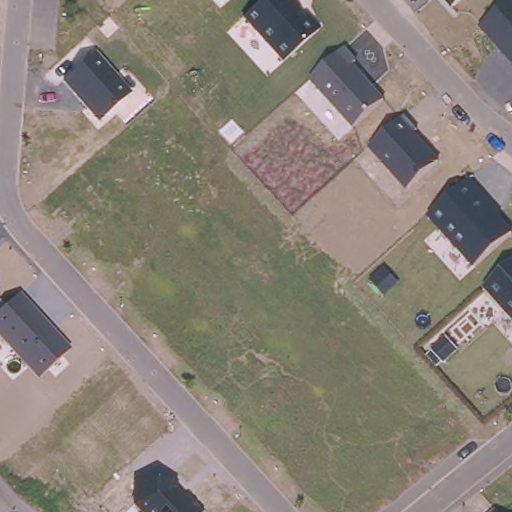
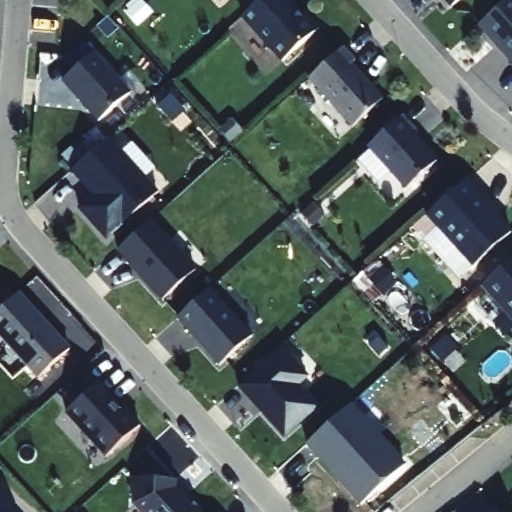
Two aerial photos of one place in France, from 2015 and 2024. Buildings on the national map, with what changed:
unchanged [(278,58),(240,17),(261,0),(289,0),(312,25),(278,58)]
unchanged [(444,0),(459,0),(451,7),(444,0)]
unchanged [(508,0),(512,0),(512,68),(477,30),(508,0)]
unchanged [(308,80),(340,50),(382,97),(350,127),(308,80)]
unchanged [(96,121),(57,81),(90,51),(128,91),(96,121)]
unchanged [(418,132),(415,136),(437,161),(407,190),(368,148),(402,115),(418,132)]
new [(107,136),(157,191),(107,237),(79,207),(96,192),(87,182),(85,185),(71,170),(107,136)]
unchanged [(470,261),(473,265),(458,278),(423,239),(437,227),(422,210),(458,177),(505,230),(470,261)]
new [(195,270),(162,300),(118,250),(152,221),(195,270)]
unchanged [(512,251),(512,321),(477,283),(512,251)]
unchanged [(37,379),(0,341),(0,300),(12,288),(68,347),(37,379)]
new [(210,288),(252,336),(218,365),(177,317),(210,288)]
new [(306,375),(297,383),(316,405),(284,434),(262,410),(266,407),(253,392),(250,396),(238,383),(280,345),(306,375)]
new [(117,400),(114,401),(120,409),(123,407),(140,425),(105,456),(65,412),(99,381),(117,400)]
new [(352,403),(405,463),(360,506),(307,445),(352,403)]
unchanged [(135,472),(177,476),(176,488),(199,512),(139,512),(132,505),(135,472)]
unchanged [(495,512),(485,512),(490,507),(495,512)]

